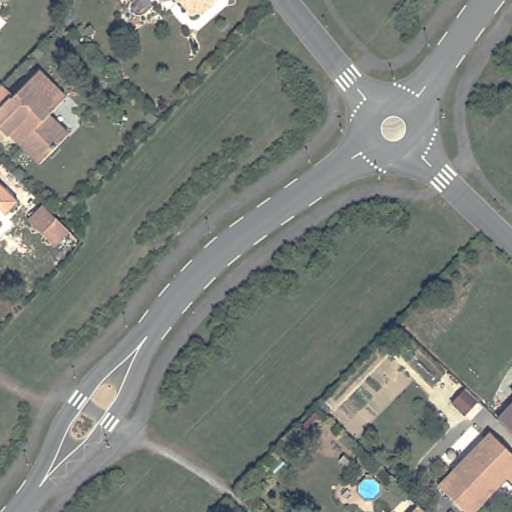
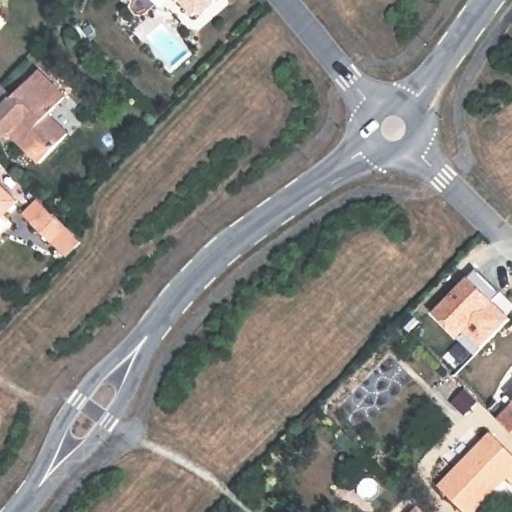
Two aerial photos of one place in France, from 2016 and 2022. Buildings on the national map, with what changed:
unchanged [(212,9),(202,17),(195,16),(191,20),(179,5),(177,6),(171,0),(215,0),(213,1),(212,9)]
unchanged [(64,102),(47,119),(67,139),(39,168),(8,137),(6,139),(0,134),(0,114),(37,75),(64,102)]
unchanged [(4,214),(0,211),(0,184),(17,200),(4,214)]
unchanged [(32,221),(44,209),(65,229),(53,240),(32,221)]
new [(461,342),(432,313),(476,269),(501,293),(492,302),(510,319),(481,349),(475,355),(461,342)]
unchanged [(512,408),(512,438),(497,424),(512,408)]
unchanged [(508,489),(502,483),(473,512),(455,512),(433,491),(485,438),(512,464),(512,485),(508,489)]
unchanged [(425,512),(412,512),(418,506),(425,512)]

